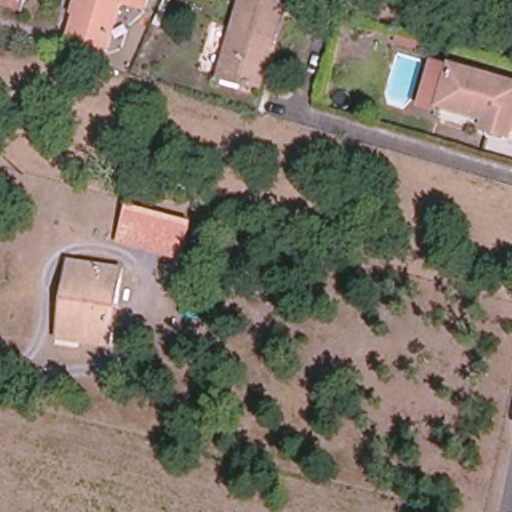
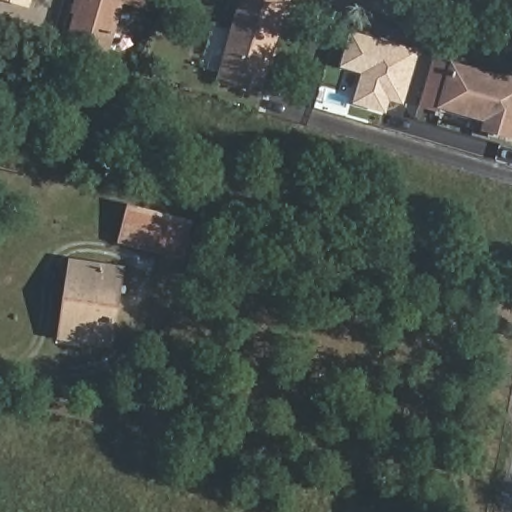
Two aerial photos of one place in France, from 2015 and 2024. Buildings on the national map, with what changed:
demolished [(24,9),(0,1),(0,0),(27,0),(24,9)]
new [(29,7),(3,0),(31,0),(29,7)]
unchanged [(148,11),(121,4),(109,53),(67,40),(72,20),(69,19),(73,0),(75,0),(77,0),(78,0),(151,0),(148,11)]
unchanged [(243,0),(281,0),(270,42),(274,43),(262,86),(221,74),(243,0)]
new [(341,68),(352,31),(419,50),(405,104),(389,100),(386,113),(353,104),(361,74),(341,68)]
unchanged [(443,105),(415,96),(426,57),(454,67),(443,105)]
unchanged [(512,133),(512,135),(487,127),(489,118),(443,105),(454,67),(512,84),(512,133)]
unchanged [(128,211),(184,225),(175,258),(120,244),(128,211)]
unchanged [(73,280),(66,280),(69,262),(117,270),(105,344),(64,338),(73,280)]

